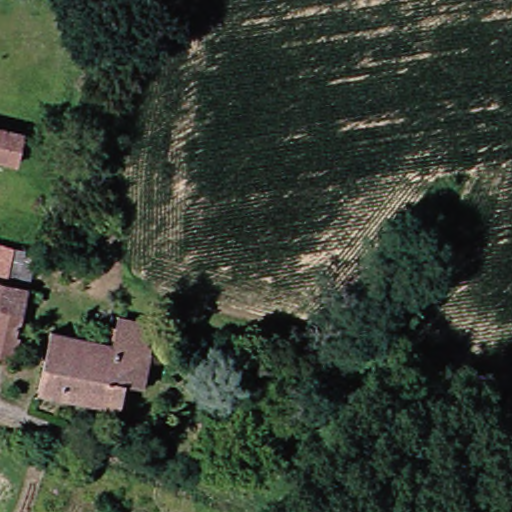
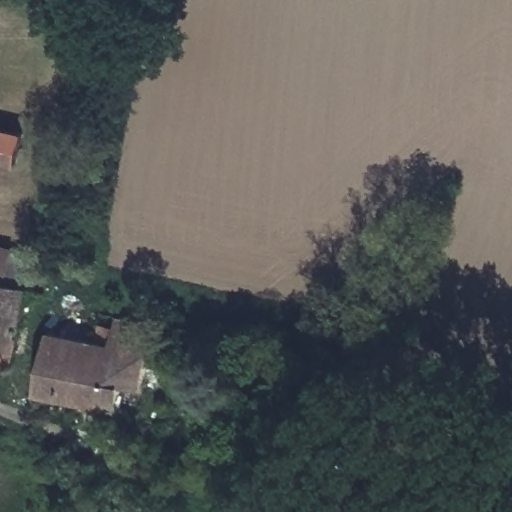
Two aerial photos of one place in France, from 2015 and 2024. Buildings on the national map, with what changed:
unchanged [(9,171),(0,168),(0,134),(18,140),(9,171)]
unchanged [(24,261),(19,285),(20,285),(16,315),(41,320),(35,345),(12,341),(10,350),(0,348),(0,260),(0,258),(24,261)]
unchanged [(46,310),(90,319),(92,311),(115,316),(118,308),(145,316),(134,376),(120,375),(115,387),(36,367),(46,310)]

